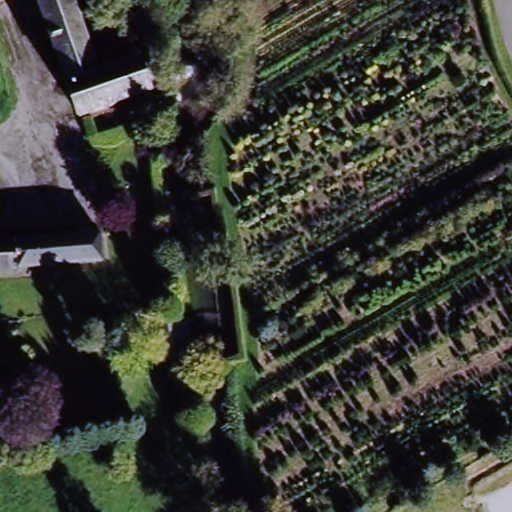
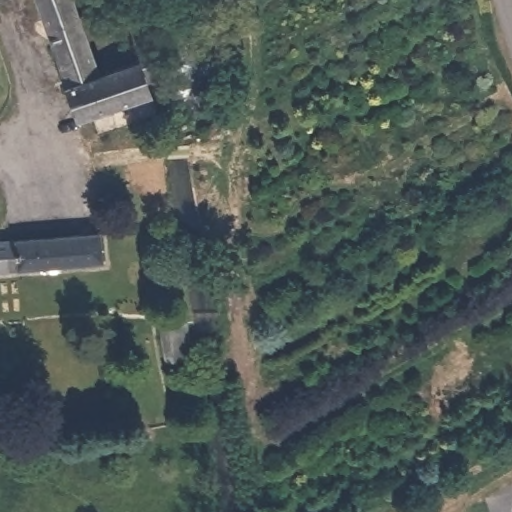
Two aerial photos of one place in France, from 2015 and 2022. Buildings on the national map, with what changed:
unchanged [(146,66),(150,77),(136,82),(141,93),(72,114),(35,0),(70,0),(74,9),(92,4),(99,24),(116,19),(125,44),(137,39),(146,66)]
unchanged [(93,224),(98,258),(0,270),(0,235),(6,235),(93,224)]
unchanged [(160,317),(177,315),(182,353),(165,355),(160,317)]

